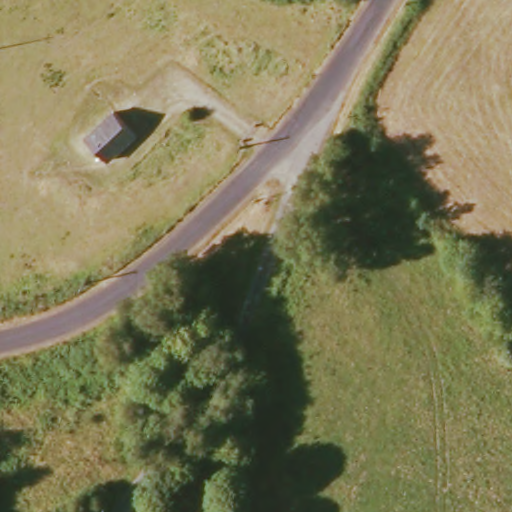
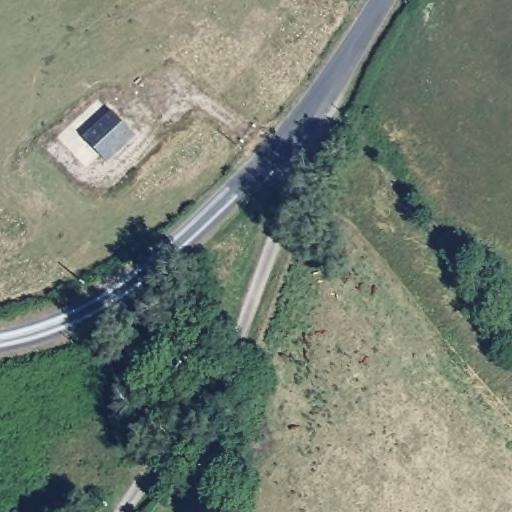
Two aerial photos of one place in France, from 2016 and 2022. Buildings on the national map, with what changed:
unchanged [(87,140),(117,115),(140,138),(109,164),(87,140)]
unchanged [(159,378),(192,321),(216,336),(181,392),(159,378)]

